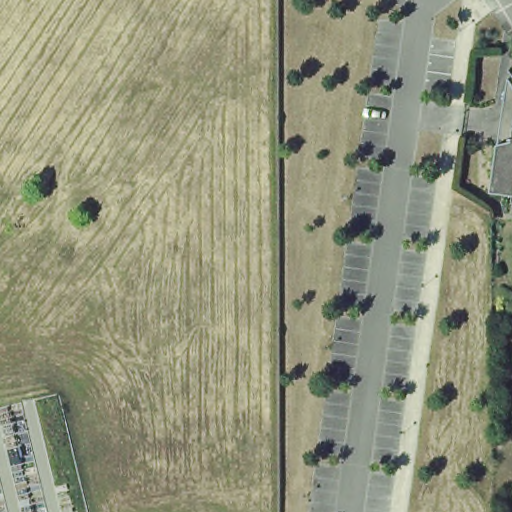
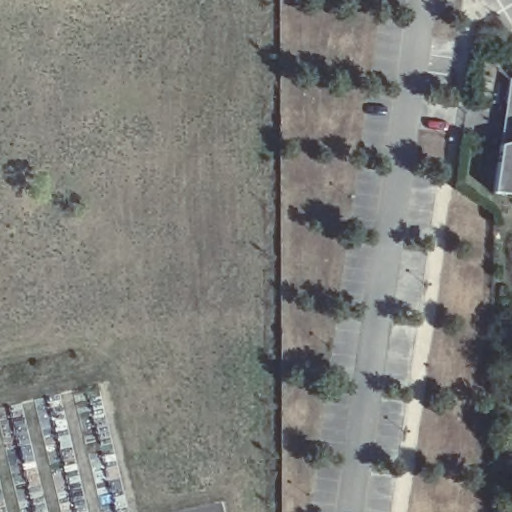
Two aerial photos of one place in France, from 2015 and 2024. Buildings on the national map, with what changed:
unchanged [(512,96),(512,181),(511,181),(507,204),(479,200),(479,199),(499,77),(512,96)]

